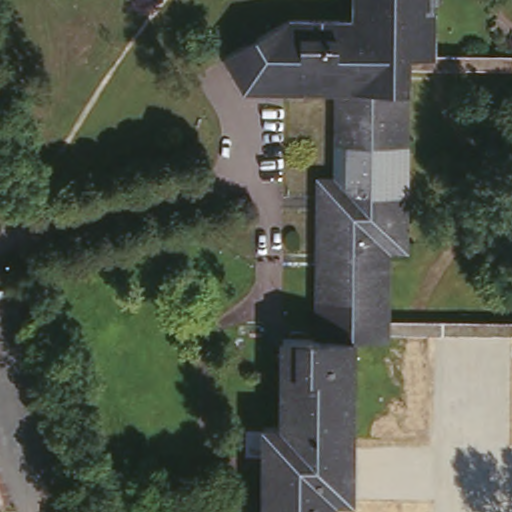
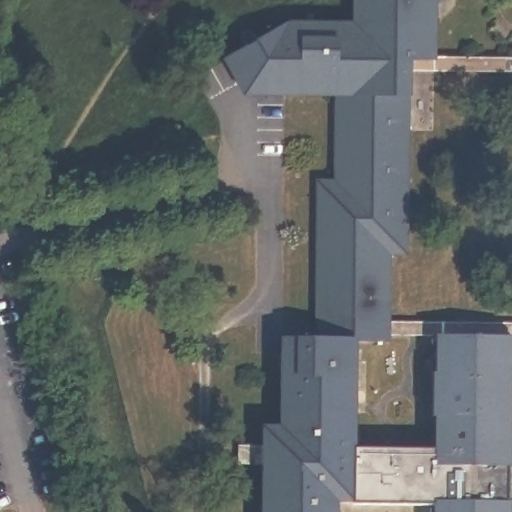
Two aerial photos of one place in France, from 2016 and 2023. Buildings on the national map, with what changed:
unchanged [(276,422),(277,334),(309,335),(312,173),(331,172),(333,95),(244,93),(218,54),(240,20),(348,16),(348,0),(436,0),(434,54),(411,54),(409,91),(407,251),(391,253),(390,340),(355,339),(355,501),(339,501),(339,512),(257,512),(258,422),(276,422)]
new [(512,512),(427,512),(427,502),(355,501),(355,449),(431,449),(431,337),(390,337),(390,322),(512,320),(512,512)]

